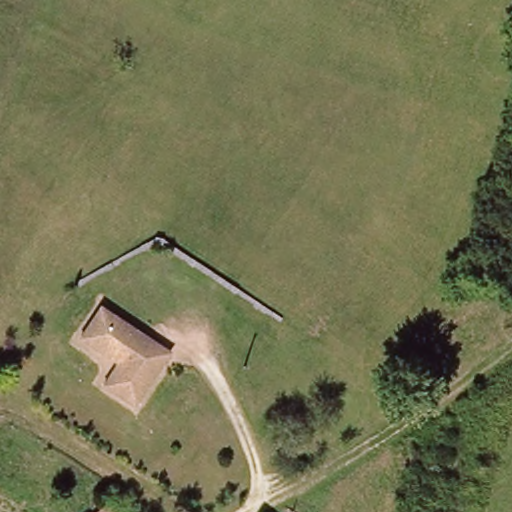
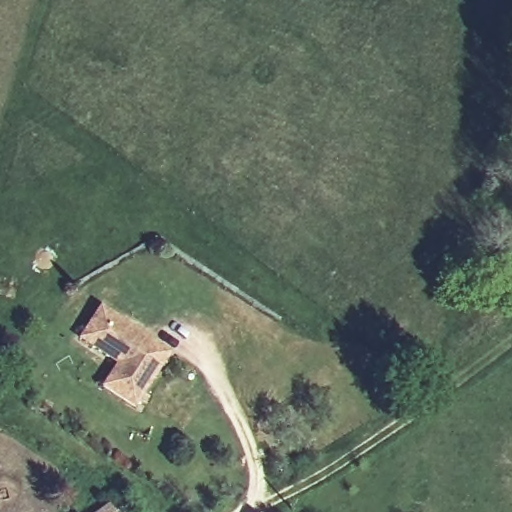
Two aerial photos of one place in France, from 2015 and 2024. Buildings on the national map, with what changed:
unchanged [(77,337),(98,306),(110,314),(167,352),(132,405),(101,384),(115,362),(106,355),(90,345),(77,337)]
unchanged [(124,512),(106,512),(116,504),(124,512)]

